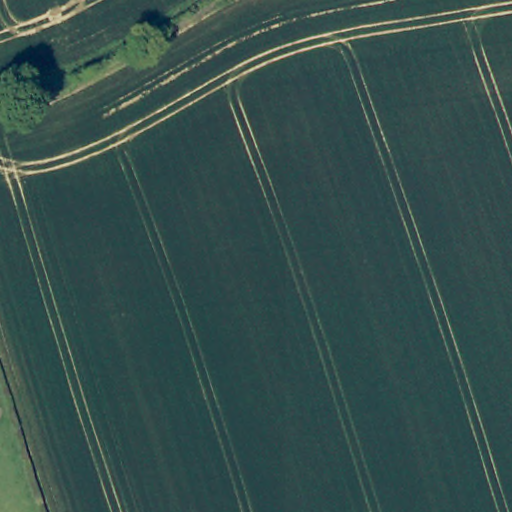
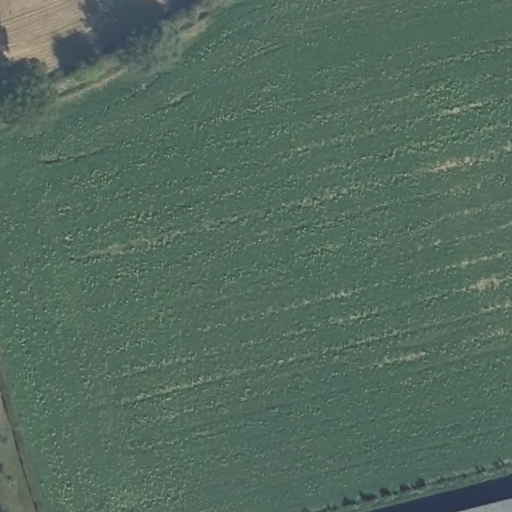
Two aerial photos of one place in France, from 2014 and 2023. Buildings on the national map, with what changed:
new [(512,501),(512,512),(468,512),(512,501)]

